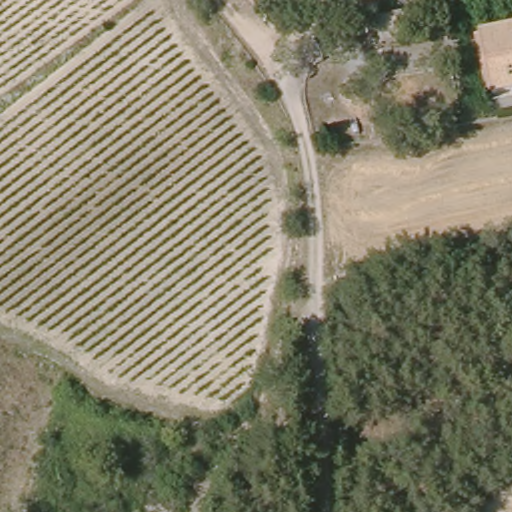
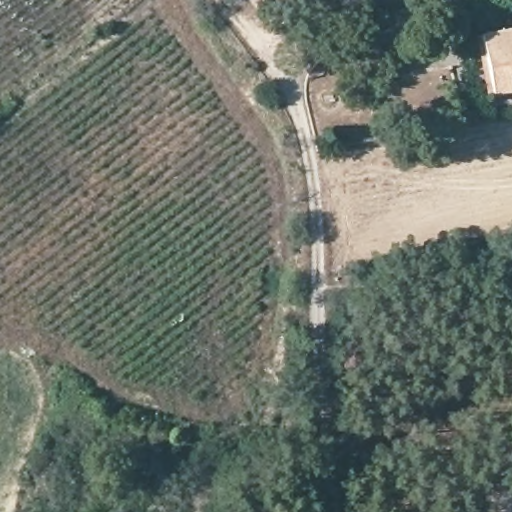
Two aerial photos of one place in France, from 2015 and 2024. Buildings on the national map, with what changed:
unchanged [(373,17),(401,11),(407,40),(376,42),(373,17)]
unchanged [(489,98),(476,35),(512,28),(512,94),(489,98)]

